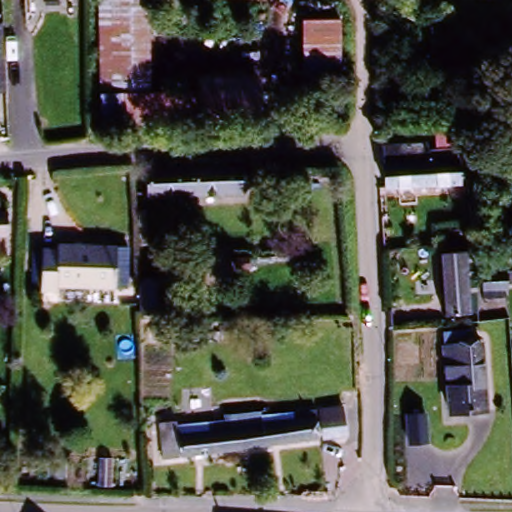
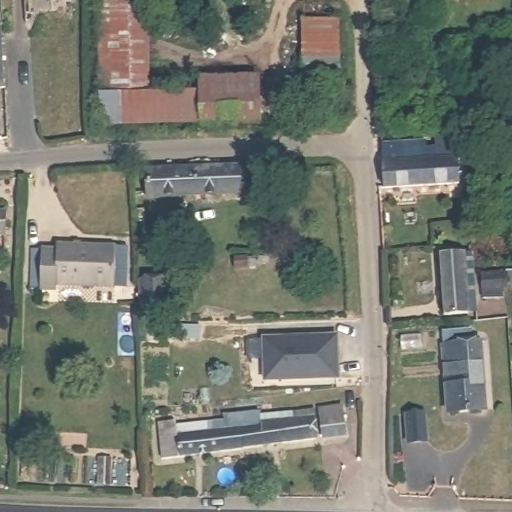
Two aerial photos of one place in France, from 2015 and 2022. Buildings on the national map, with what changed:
unchanged [(147,0),(151,85),(199,84),(201,124),(104,133),(97,2),(137,0),(147,0)]
unchanged [(315,120),(311,77),(308,43),(306,29),(333,26),(334,41),(336,74),(338,118),(315,120)]
unchanged [(0,88),(0,33),(5,85),(0,88)]
unchanged [(255,80),(257,121),(201,124),(199,84),(255,80)]
unchanged [(382,182),(382,143),(400,141),(410,141),(451,138),(452,155),(471,154),(472,176),(403,180),(382,182)]
unchanged [(139,205),(140,174),(189,172),(235,172),(235,204),(139,205)]
unchanged [(7,218),(16,218),(18,242),(0,242),(0,202),(6,202),(7,218)]
unchanged [(473,247),(475,261),(504,258),(508,294),(476,299),(477,313),(443,314),(437,245),(473,247)]
unchanged [(42,260),(56,259),(56,254),(115,251),(130,250),(132,289),(116,290),(61,293),(62,302),(45,304),(34,305),(33,264),(42,263),(42,260)]
unchanged [(142,292),(162,289),(163,326),(145,327),(142,292)]
new [(337,336),(339,379),(262,381),(263,336),(337,336)]
unchanged [(444,412),(441,339),(466,338),(468,410),(444,412)]
new [(255,417),(227,421),(226,414),(255,409),(255,417)]
unchanged [(329,443),(327,414),(350,412),(351,440),(329,443)]
new [(425,412),(427,439),(408,441),(406,413),(425,412)]
unchanged [(165,430),(180,428),(180,436),(245,427),(268,424),(315,418),(320,447),(249,457),(182,466),(169,468),(165,430)]

